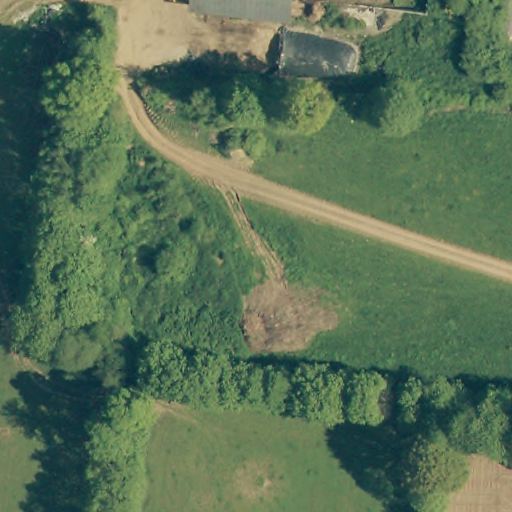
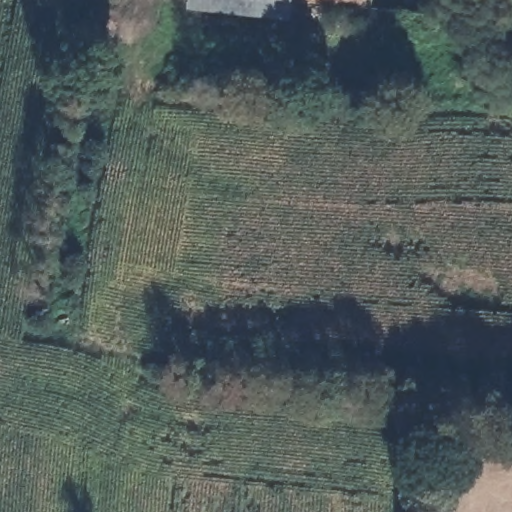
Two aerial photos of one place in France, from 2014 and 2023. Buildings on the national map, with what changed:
unchanged [(192,10),(193,0),(295,0),(293,21),(192,10)]

